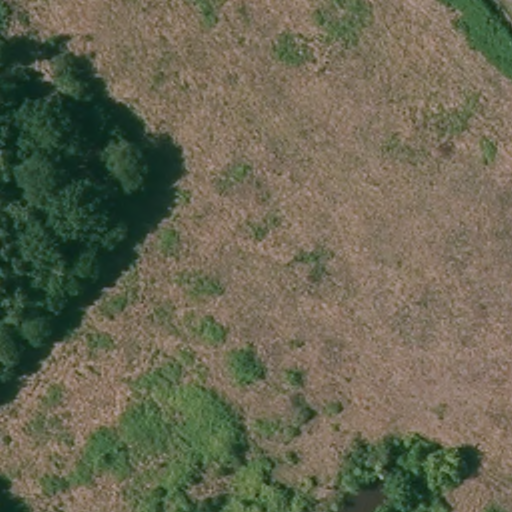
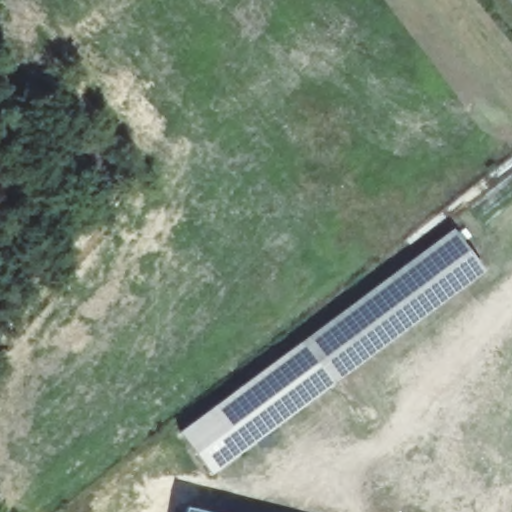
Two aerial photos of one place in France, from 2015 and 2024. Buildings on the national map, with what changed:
new [(179,434),(454,228),(486,272),(211,476),(179,434)]
new [(185,508),(202,512),(184,512),(185,508)]

